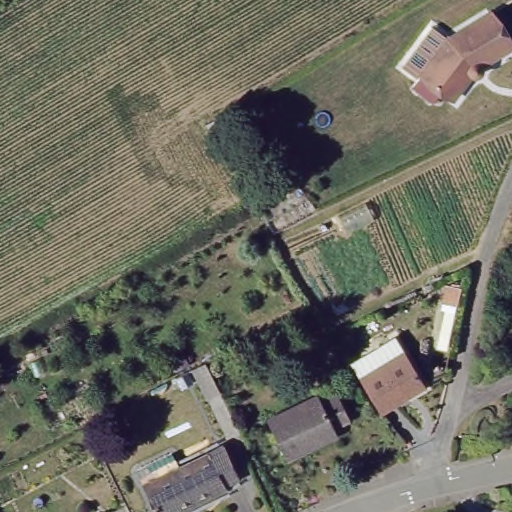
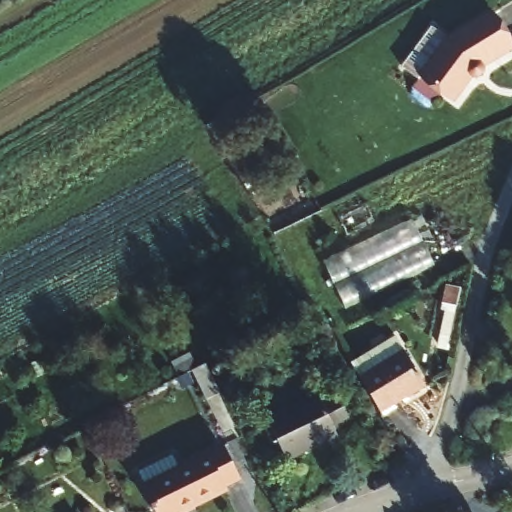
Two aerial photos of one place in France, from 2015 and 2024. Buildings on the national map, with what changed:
unchanged [(441,39),(485,15),(504,49),(475,67),(477,73),(469,78),(464,74),(447,97),(420,75),(441,39)]
new [(323,260),(411,219),(436,266),(345,310),(323,260)]
new [(452,350),(440,348),(445,285),(457,285),(452,350)]
unchanged [(400,350),(421,386),(377,411),(355,375),(400,350)]
unchanged [(207,363),(221,392),(208,399),(194,370),(207,363)]
unchanged [(287,460),(267,420),(318,395),(334,387),(350,420),(335,429),(337,435),(287,460)]
unchanged [(195,512),(164,512),(152,488),(146,476),(178,460),(185,472),(214,457),(228,450),(243,482),(229,490),(231,495),(195,512)]

